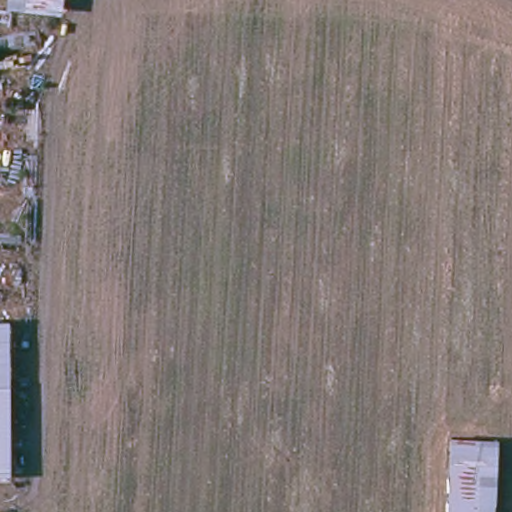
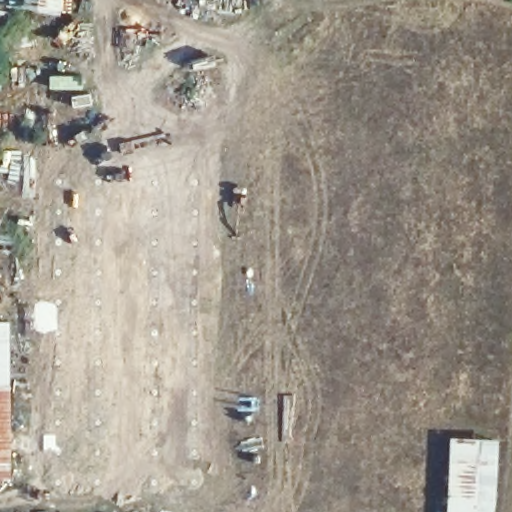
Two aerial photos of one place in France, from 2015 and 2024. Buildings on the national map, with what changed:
unchanged [(0,318),(11,318),(10,384),(0,384),(0,318)]
unchanged [(10,478),(0,478),(0,384),(10,384),(10,478)]
unchanged [(498,442),(494,512),(444,512),(447,440),(498,442)]

